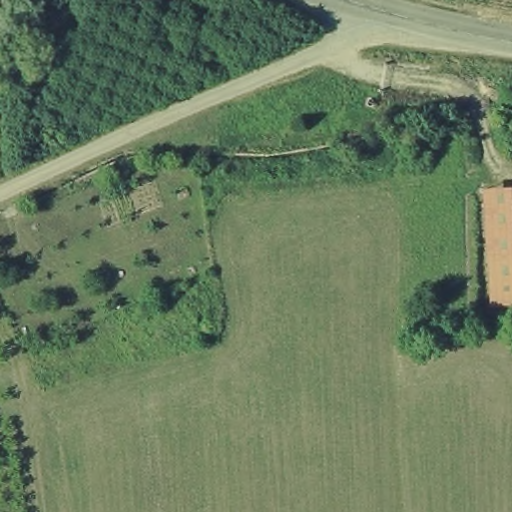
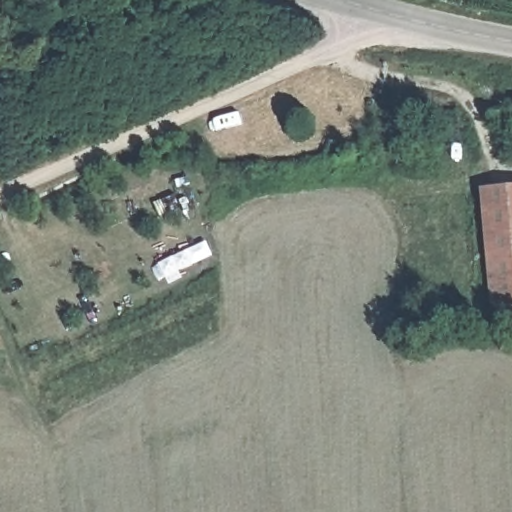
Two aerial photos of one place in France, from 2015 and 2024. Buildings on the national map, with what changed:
unchanged [(495,309),(485,190),(512,187),(512,307),(495,309)]

